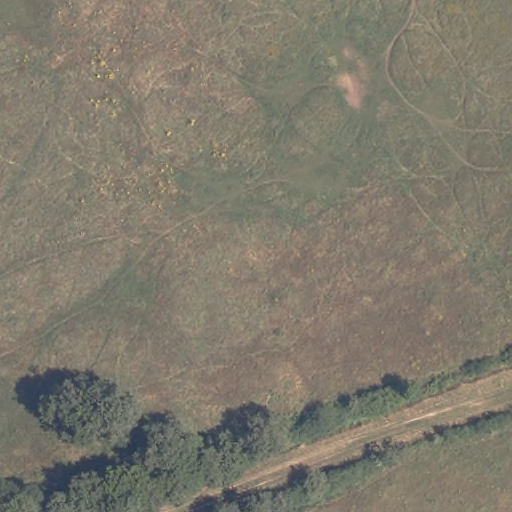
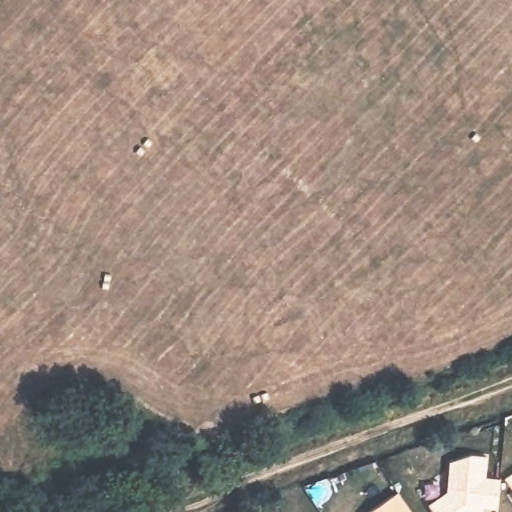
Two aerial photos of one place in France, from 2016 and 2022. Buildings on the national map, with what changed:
new [(429,505),(448,492),(450,461),(471,455),(487,456),(485,477),(500,479),(498,508),(483,507),(482,512),(434,512),(429,505)]
new [(399,492),(412,512),(369,512),(399,492)]

